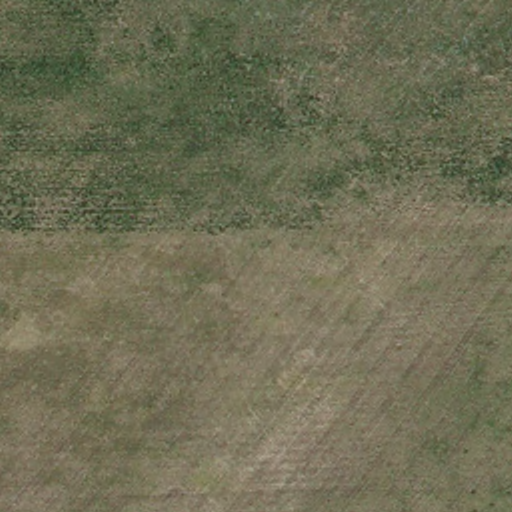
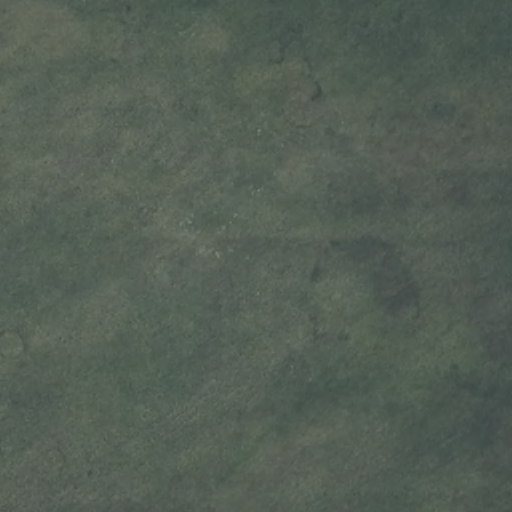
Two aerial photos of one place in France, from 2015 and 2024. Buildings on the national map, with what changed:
[]

